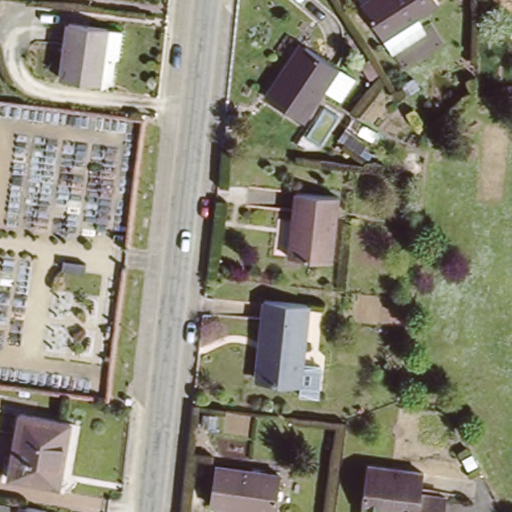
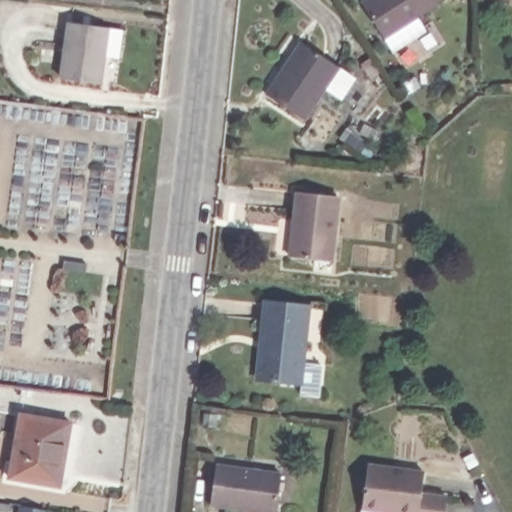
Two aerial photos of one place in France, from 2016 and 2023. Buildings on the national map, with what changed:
unchanged [(428,0),(407,15),(417,28),(388,49),(356,2),(359,0),(428,0)]
unchanged [(62,21),(115,27),(112,56),(97,54),(94,82),(55,77),(62,21)]
unchanged [(277,66),(286,71),(306,47),(354,81),(340,101),(321,88),(300,120),(259,92),(277,66)]
unchanged [(299,188),(338,196),(324,261),(286,253),(299,188)]
unchanged [(259,299),(304,302),(296,383),(249,378),(259,299)]
unchanged [(66,423),(57,486),(7,479),(15,416),(66,423)]
unchanged [(211,461),(281,469),(273,512),(261,512),(206,502),(211,461)]
unchanged [(364,461),(421,468),(419,490),(447,494),(445,512),(358,512),(359,507),(364,461)]
unchanged [(43,508),(42,512),(13,512),(15,502),(43,508)]

